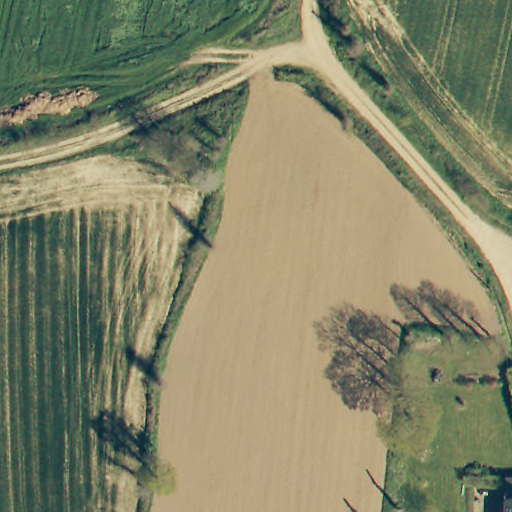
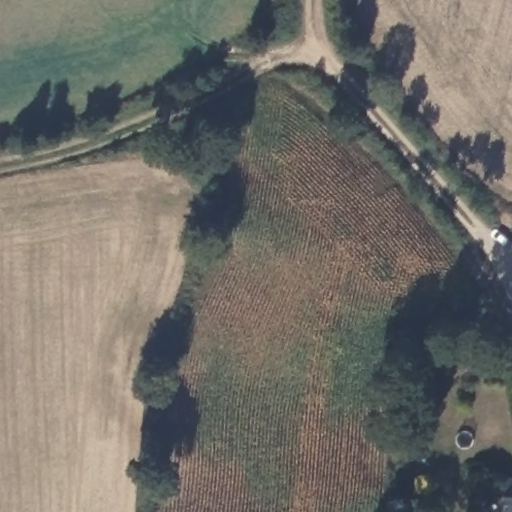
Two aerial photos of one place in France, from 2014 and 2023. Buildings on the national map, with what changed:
unchanged [(497,497),(497,476),(512,476),(512,512),(498,512),(497,497)]

